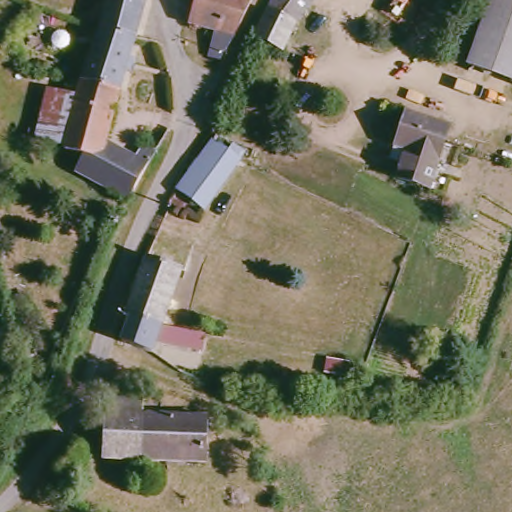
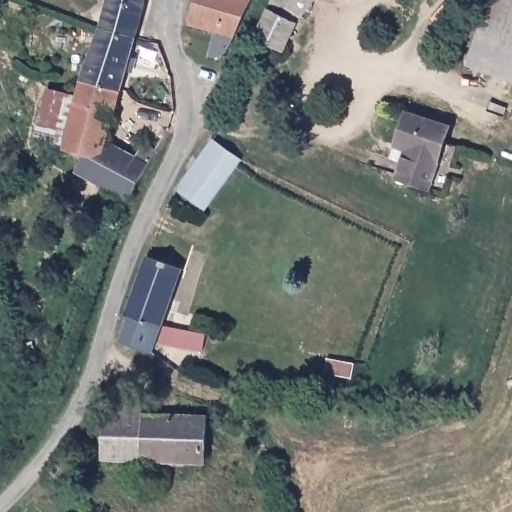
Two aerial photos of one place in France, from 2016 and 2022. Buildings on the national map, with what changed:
unchanged [(151,11),(142,39),(102,26),(110,0),(150,0),(151,11)]
unchanged [(247,9),(226,50),(210,45),(214,35),(189,27),(199,0),(251,0),(247,9)]
unchanged [(279,47),(255,38),(274,0),(315,0),(279,47)]
unchanged [(472,65),(496,0),(512,0),(512,79),(472,65)]
unchanged [(115,141),(156,165),(137,197),(135,197),(83,171),(90,157),(75,151),(68,148),(82,98),(102,26),(142,39),(115,141)]
unchanged [(82,98),(68,148),(34,135),(47,86),(82,98)]
unchanged [(454,129),(434,189),(401,179),(411,152),(398,146),(411,114),(454,129)]
unchanged [(246,159),(208,208),(181,189),(217,139),(246,159)]
unchanged [(187,274),(170,320),(132,311),(152,262),(152,260),(187,274)]
unchanged [(167,327),(211,338),(206,357),(161,346),(156,356),(125,342),(130,318),(132,311),(170,320),(167,327)]
unchanged [(359,384),(334,375),(340,359),(367,363),(359,384)]
unchanged [(207,468),(109,463),(114,399),(147,402),(147,418),(210,421),(207,468)]

